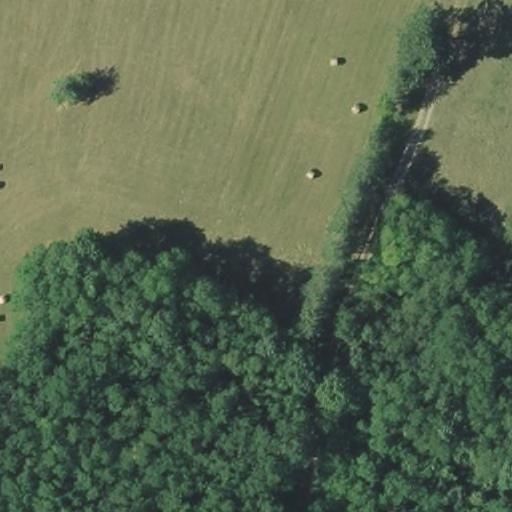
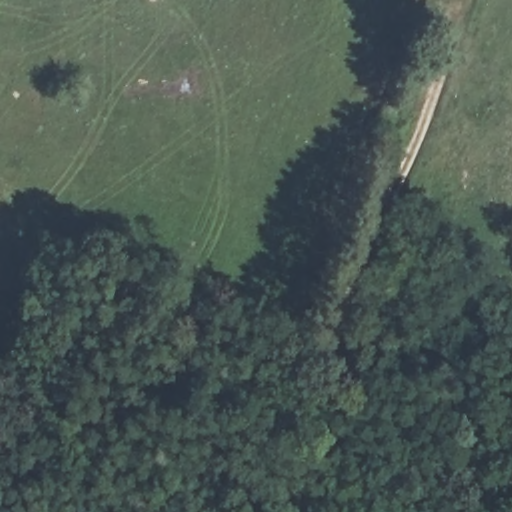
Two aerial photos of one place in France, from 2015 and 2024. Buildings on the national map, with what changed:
[]

